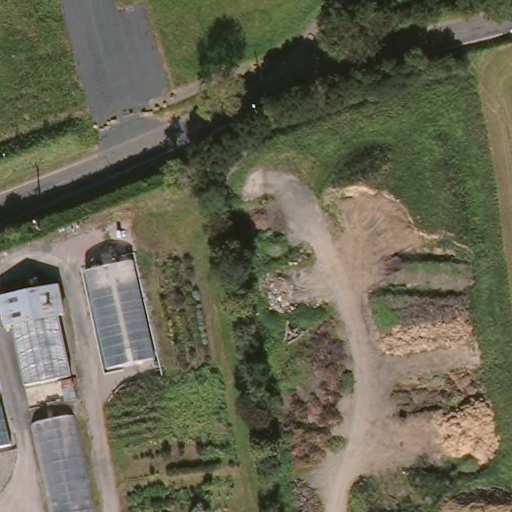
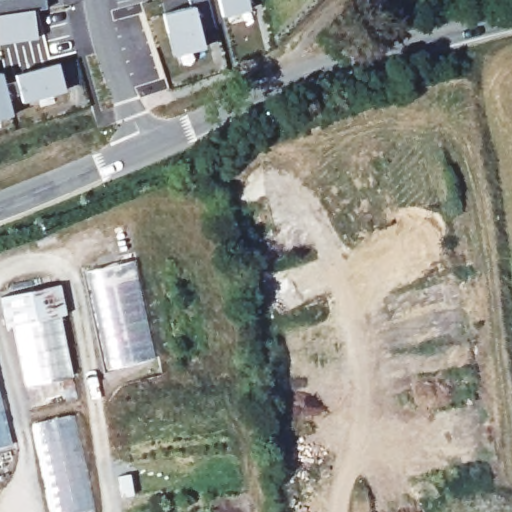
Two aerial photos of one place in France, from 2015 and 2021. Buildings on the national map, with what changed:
new [(34,10),(38,38),(0,44),(0,0),(46,0),(47,8),(34,10)]
new [(208,0),(218,35),(202,37),(205,49),(173,56),(164,15),(194,6),(191,0),(208,0)]
new [(223,19),(218,0),(248,0),(250,10),(223,19)]
new [(29,72),(59,63),(67,90),(23,102),(21,95),(9,98),(14,115),(0,119),(0,86),(31,78),(29,72)]
unchanged [(88,270),(135,260),(156,359),(108,369),(88,270)]
unchanged [(60,284),(67,316),(60,318),(73,379),(31,387),(18,325),(8,327),(3,295),(60,284)]
unchanged [(0,447),(0,396),(11,444),(0,447)]
unchanged [(81,411),(101,512),(55,512),(37,421),(81,411)]

